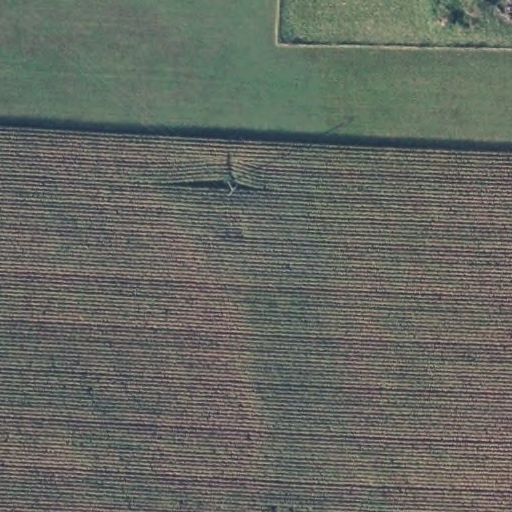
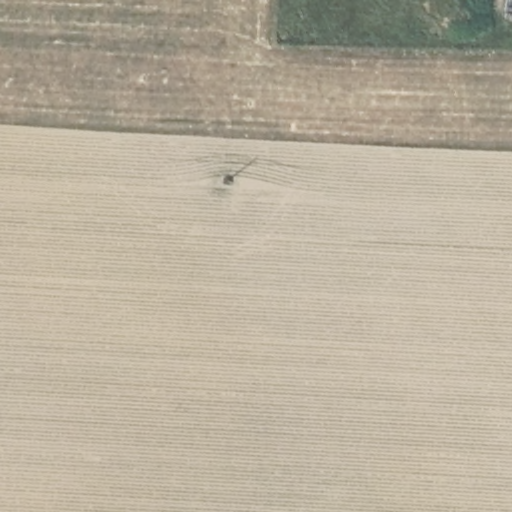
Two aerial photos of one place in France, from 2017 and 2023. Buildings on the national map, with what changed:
[]

